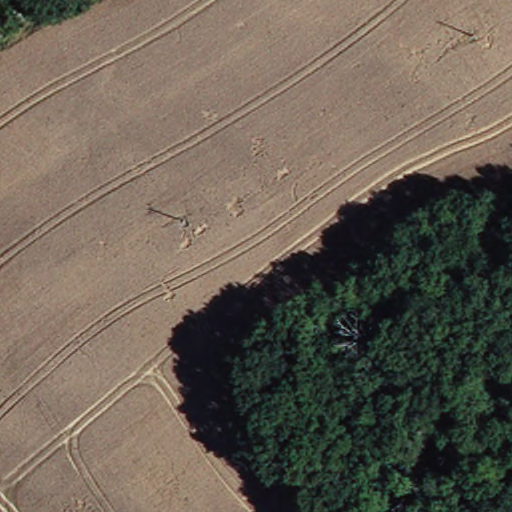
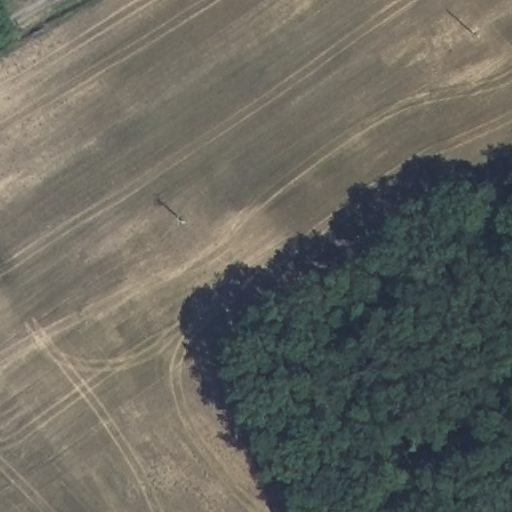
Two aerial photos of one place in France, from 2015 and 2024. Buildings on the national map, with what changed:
[]

